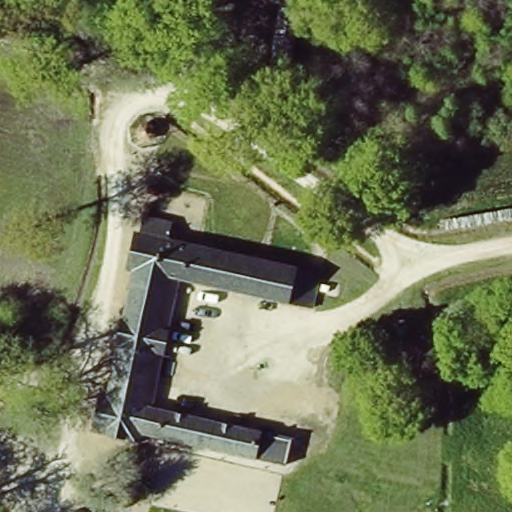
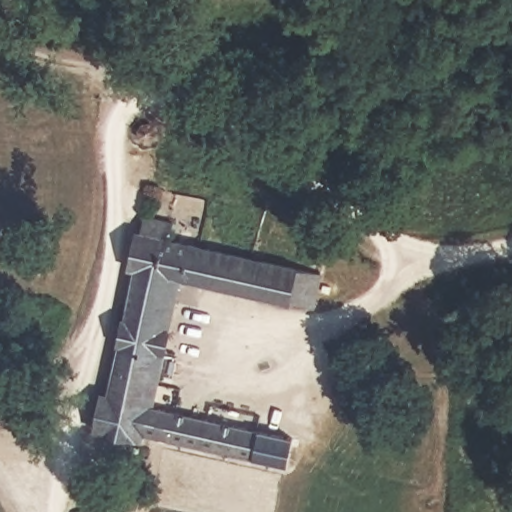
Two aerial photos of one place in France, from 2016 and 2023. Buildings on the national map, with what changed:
unchanged [(108,396),(130,273),(117,270),(124,232),(133,234),(136,217),(166,222),(162,239),(291,264),(311,267),(307,302),(288,299),(171,278),(150,406),(259,429),(250,458),(146,434),(146,441),(88,428),(96,394),(108,396)]

